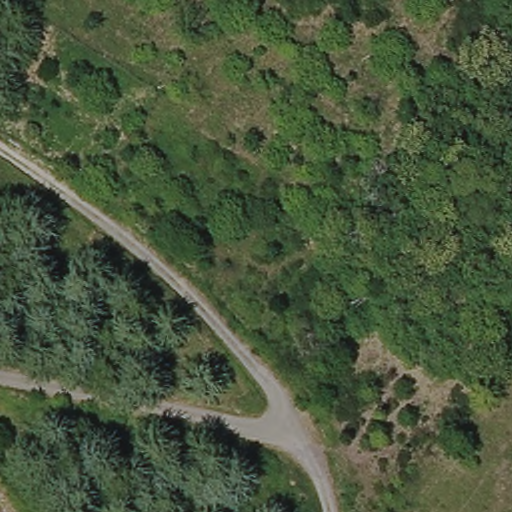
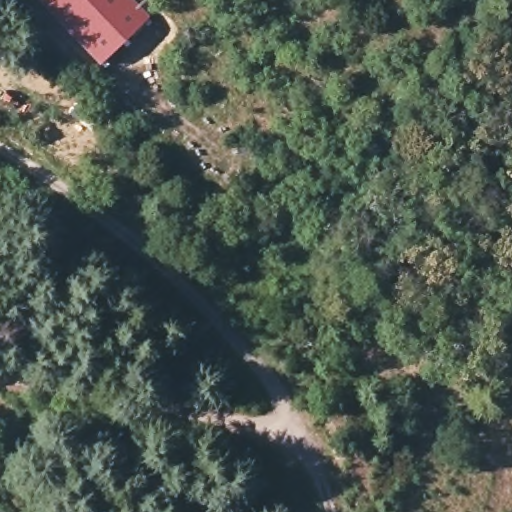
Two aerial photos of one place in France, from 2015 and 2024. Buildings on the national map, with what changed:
new [(38,0),(134,0),(149,16),(98,63),(38,0)]

